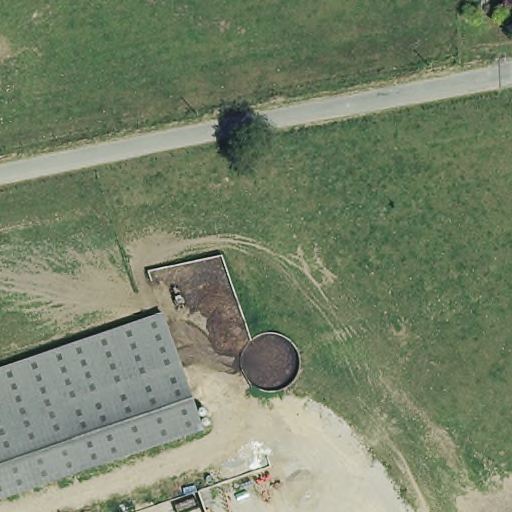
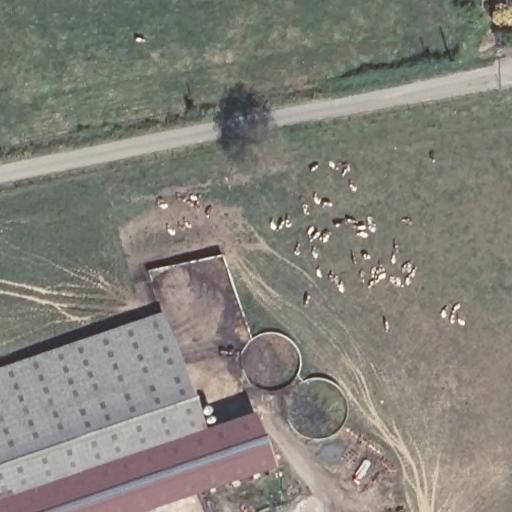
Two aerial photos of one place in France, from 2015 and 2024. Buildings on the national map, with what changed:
unchanged [(160,312),(200,428),(0,498),(0,367),(160,312)]
new [(251,411),(268,467),(136,512),(0,512),(0,498),(200,428),(251,411)]

